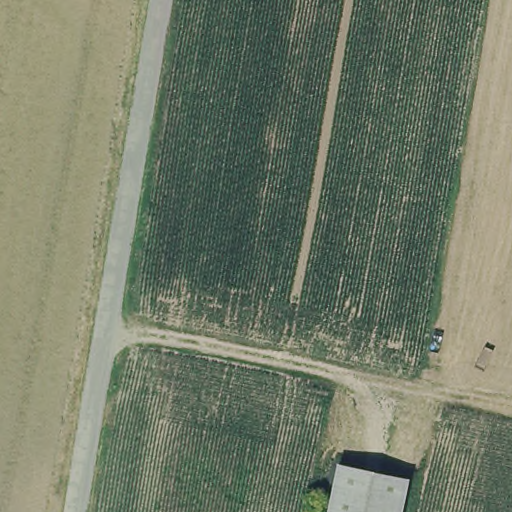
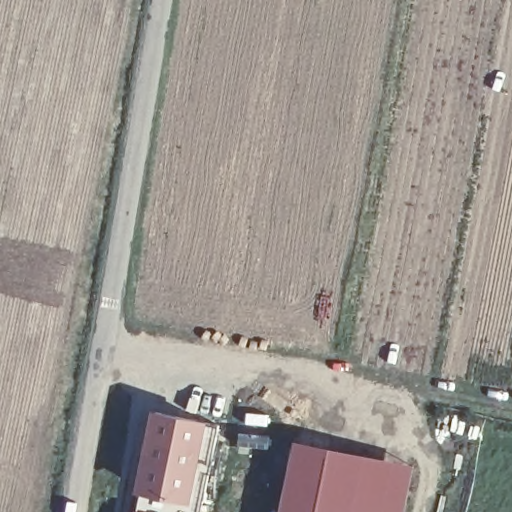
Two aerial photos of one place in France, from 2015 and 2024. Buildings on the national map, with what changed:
new [(208,417),(192,504),(130,493),(147,409),(208,417)]
new [(398,462),(391,512),(285,512),(300,442),(398,462)]
demolished [(407,473),(398,512),(319,512),(333,458),(407,473)]

